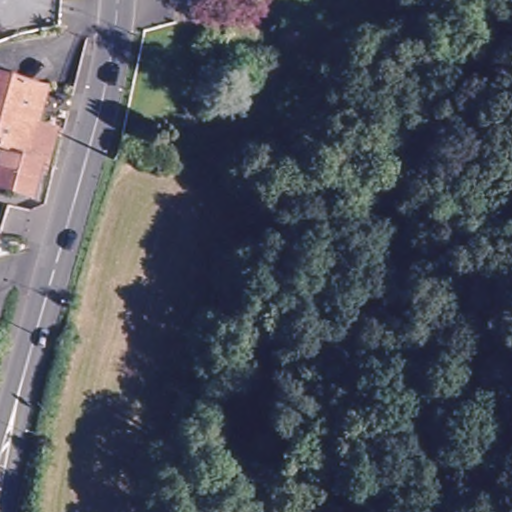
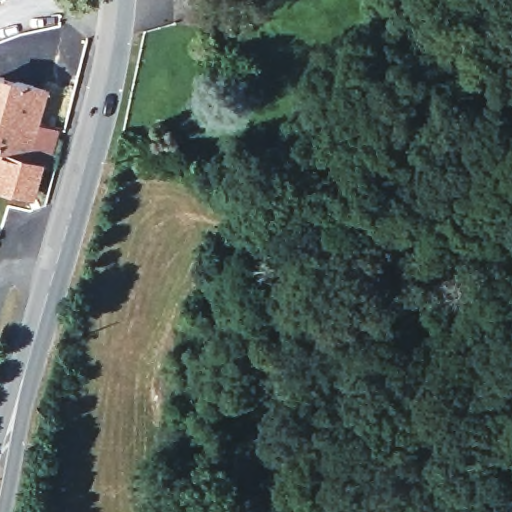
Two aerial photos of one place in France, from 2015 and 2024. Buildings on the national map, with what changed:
unchanged [(41,85),(32,120),(52,125),(42,161),(35,159),(27,190),(0,184),(0,74),(41,85)]

